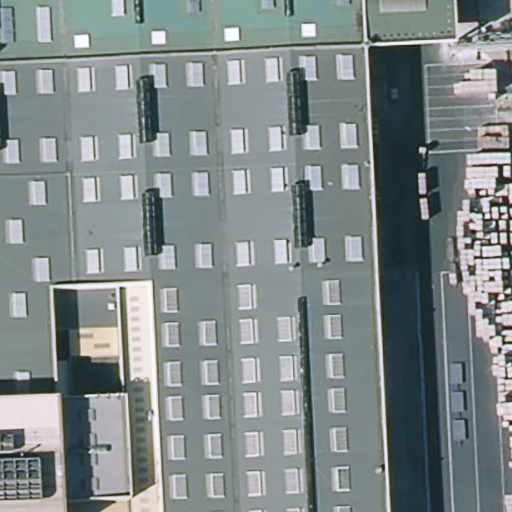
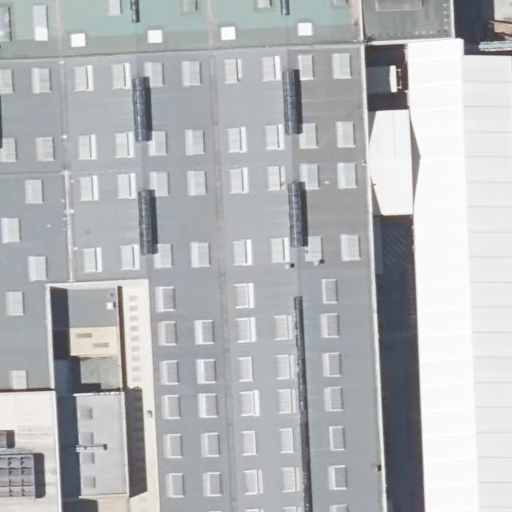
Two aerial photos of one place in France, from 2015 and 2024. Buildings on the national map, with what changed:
unchanged [(0,76),(0,0),(360,0),(364,59),(0,76)]
unchanged [(450,0),(453,54),(364,59),(360,0),(450,0)]
new [(414,220),(371,223),(366,119),(411,115),(408,56),(453,54),(452,47),(463,47),(463,65),(512,61),(512,74),(512,512),(425,512),(414,220)]
unchanged [(0,76),(364,59),(384,512),(0,512),(0,76)]

